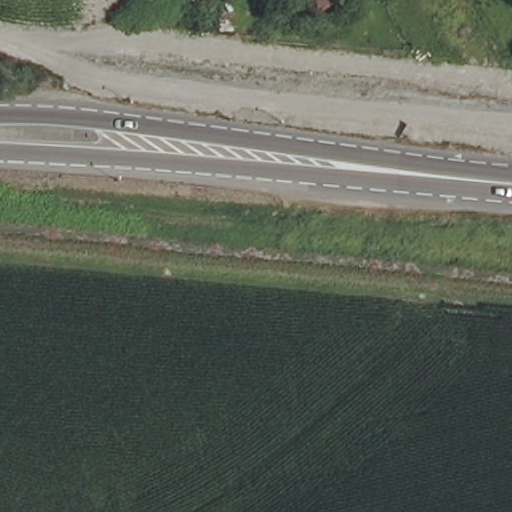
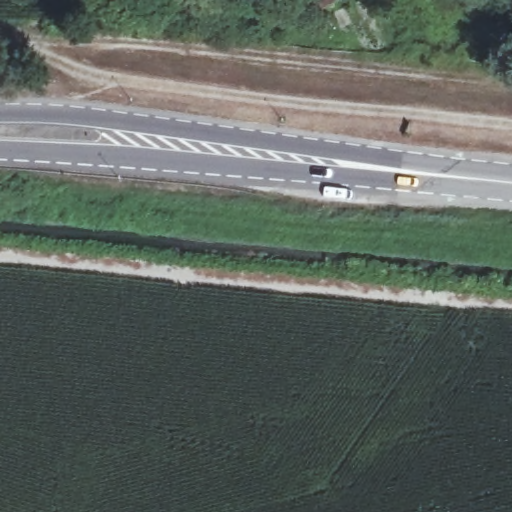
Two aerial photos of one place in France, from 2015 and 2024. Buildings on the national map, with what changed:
unchanged [(327,9),(320,0),(340,0),(327,9)]

